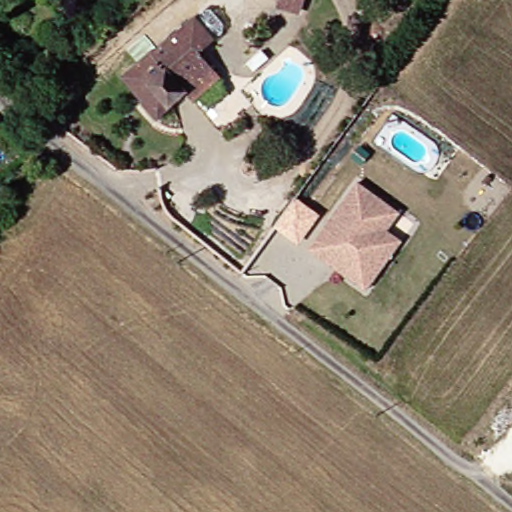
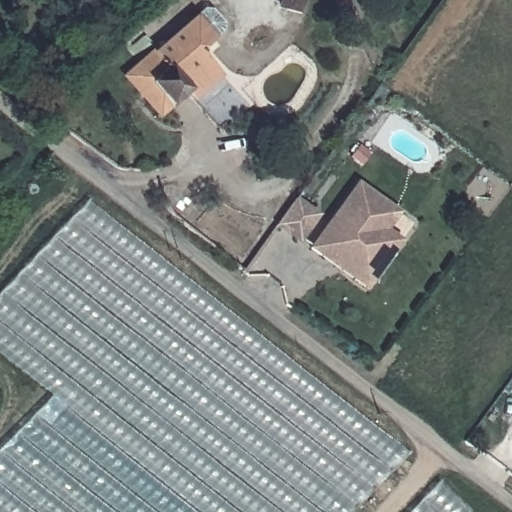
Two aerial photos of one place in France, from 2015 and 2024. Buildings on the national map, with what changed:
new [(299,0),(296,13),(276,8),(278,0),(299,0)]
unchanged [(156,75),(169,62),(160,52),(204,14),(217,31),(201,47),(224,76),(199,99),(191,92),(178,102),(156,75)]
unchanged [(166,114),(135,75),(160,52),(169,62),(156,75),(178,102),(166,114)]
unchanged [(331,262),(313,248),(363,184),(393,206),(403,213),(389,231),(403,242),(397,250),(371,283),(367,290),(331,262)]
unchanged [(320,214),(300,240),(277,225),(298,198),(320,214)]
new [(92,201),(409,452),(352,512),(0,512),(0,452),(50,399),(0,354),(0,293),(92,201)]
new [(440,481),(471,512),(410,512),(440,481)]

